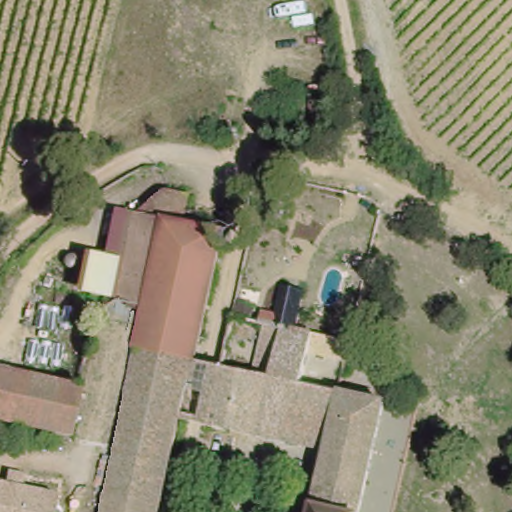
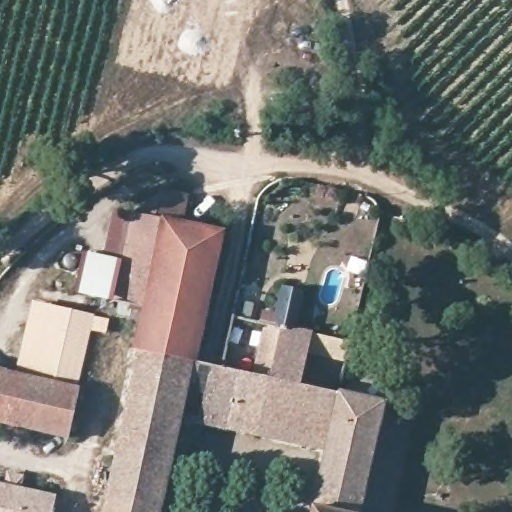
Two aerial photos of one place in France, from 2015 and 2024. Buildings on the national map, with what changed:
unchanged [(205,319),(146,305),(165,219),(133,212),(167,188),(186,191),(180,221),(225,231),(205,319)]
unchanged [(105,258),(112,208),(133,213),(115,297),(75,289),(83,254),(105,258)]
unchanged [(146,305),(115,298),(115,297),(133,213),(165,219),(146,305)]
unchanged [(328,442),(327,447),(257,432),(228,425),(240,369),(221,365),(233,314),(262,320),(265,309),(277,312),(283,285),(304,290),(295,328),(318,333),(351,340),(347,359),(310,351),(303,383),(340,391),(385,401),(373,451),(328,442)]
new [(110,318),(106,335),(91,332),(81,379),(16,366),(32,300),(110,318)]
unchanged [(196,359),(193,359),(139,347),(136,346),(146,305),(205,319),(196,359)]
unchanged [(158,512),(101,512),(139,347),(193,359),(180,415),(158,512)]
unchanged [(205,420),(180,415),(193,359),(196,359),(218,364),(205,420)]
unchanged [(71,431),(0,416),(0,363),(81,379),(83,380),(71,431)]
unchanged [(221,365),(240,369),(228,425),(205,420),(218,364),(221,365)]
unchanged [(360,512),(351,512),(315,504),(327,447),(328,442),(373,451),(360,512)]
unchanged [(22,512),(0,512),(0,477),(28,482),(22,512)]
unchanged [(53,512),(22,512),(28,482),(58,488),(53,512)]
unchanged [(315,504),(351,512),(313,512),(315,504)]

